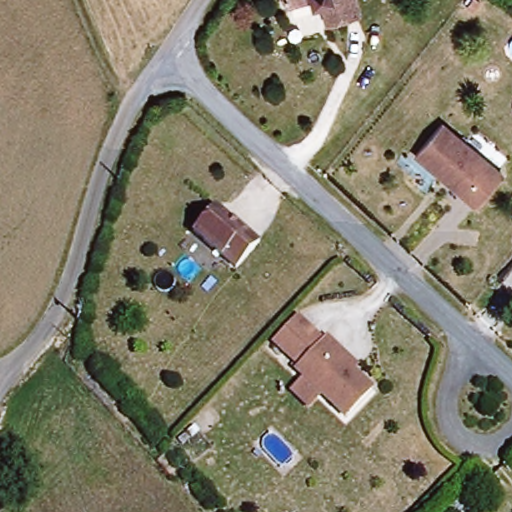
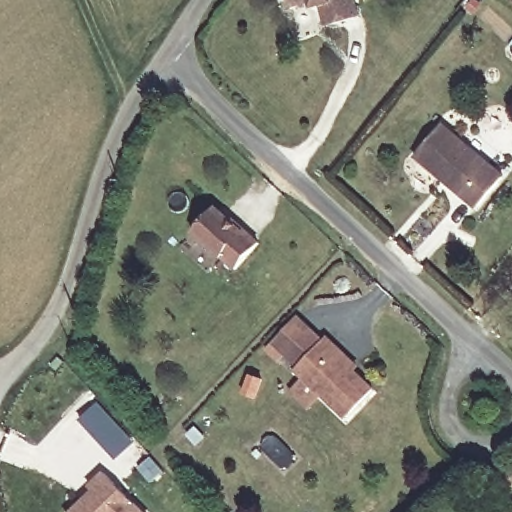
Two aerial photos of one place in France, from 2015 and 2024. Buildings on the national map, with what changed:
unchanged [(283,7),(281,0),(313,0),(283,7)]
unchanged [(354,19),(324,26),(318,0),(350,0),(354,19)]
unchanged [(441,133),(501,185),(474,216),(414,164),(441,133)]
unchanged [(243,234),(258,249),(233,273),(191,232),(213,211),(239,237),(243,234)]
unchanged [(278,346),(301,320),(326,344),(302,369),(278,346)]
unchanged [(324,399),(311,411),(294,395),(307,382),(298,373),(302,369),(326,344),(329,341),(359,370),(354,374),(374,394),(348,422),(324,399)]
new [(115,459),(79,420),(98,403),(134,442),(115,459)]
new [(83,489),(98,475),(133,512),(68,512),(74,506),(88,494),(83,489)]

